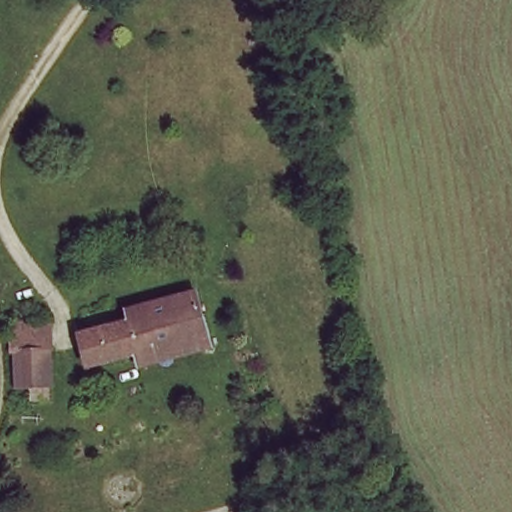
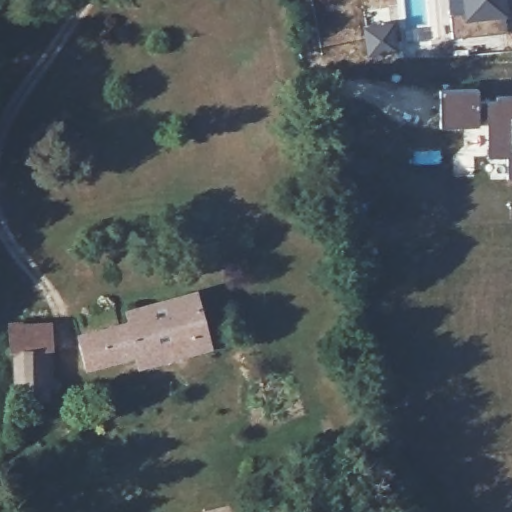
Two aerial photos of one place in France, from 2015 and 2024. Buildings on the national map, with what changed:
new [(450,14),(462,11),(462,0),(505,0),(507,15),(502,16),(504,30),(452,36),(450,14)]
new [(507,177),(506,156),(487,156),(487,117),(477,116),(477,125),(440,125),(440,91),(477,89),(477,100),(497,100),(497,97),(512,97),(512,117),(511,151),(512,152),(512,177),(507,177)]
unchanged [(152,323),(151,307),(206,294),(214,342),(86,377),(75,341),(152,323)]
unchanged [(8,321),(44,314),(56,396),(19,402),(8,321)]

